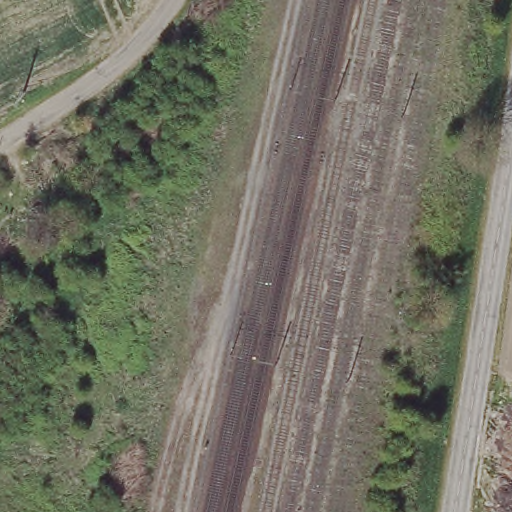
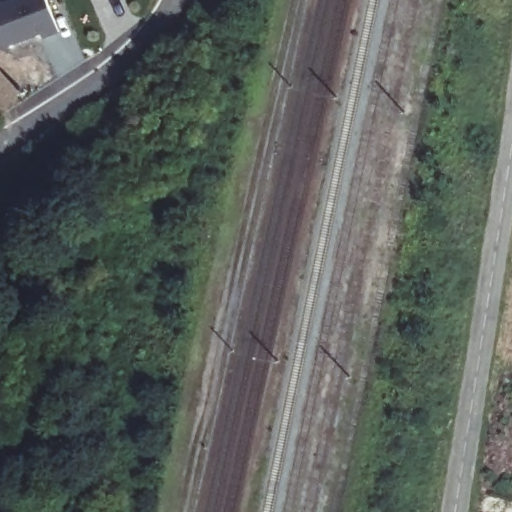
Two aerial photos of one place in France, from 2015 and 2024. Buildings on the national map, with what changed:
new [(41,32),(0,49),(0,4),(10,0),(47,0),(59,31),(43,37),(41,32)]
unchanged [(76,124),(91,147),(63,166),(48,144),(76,124)]

